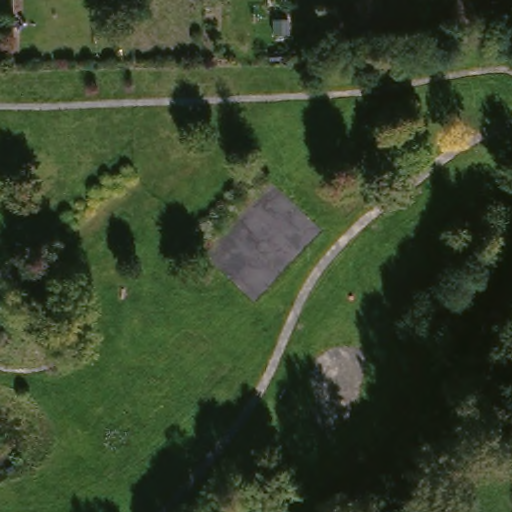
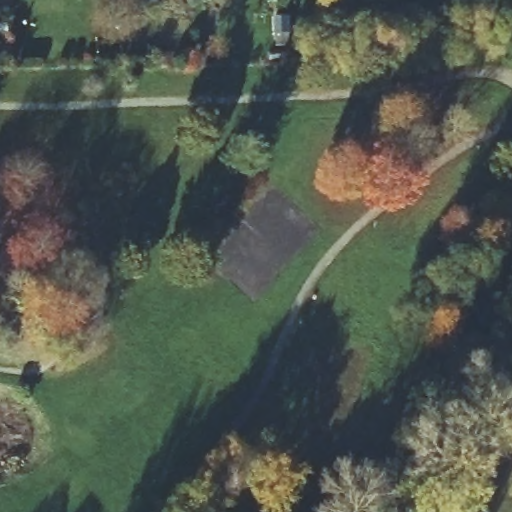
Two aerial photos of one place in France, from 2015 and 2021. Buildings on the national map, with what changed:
[]

